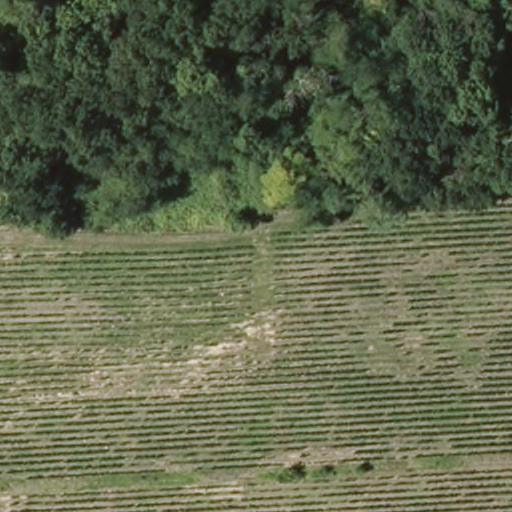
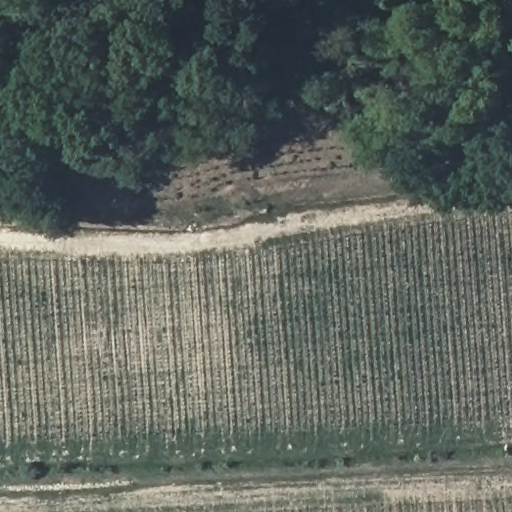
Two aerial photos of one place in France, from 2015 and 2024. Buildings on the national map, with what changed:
[]

